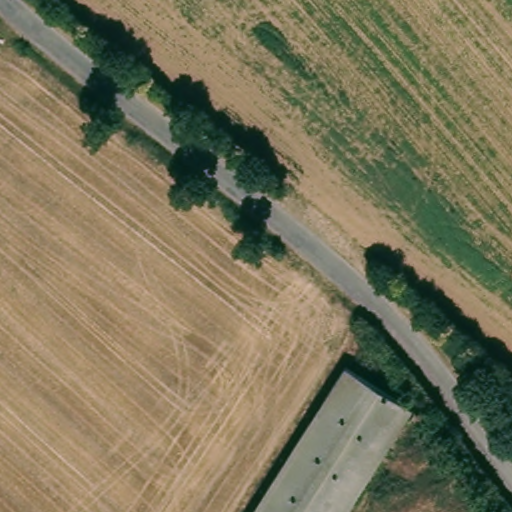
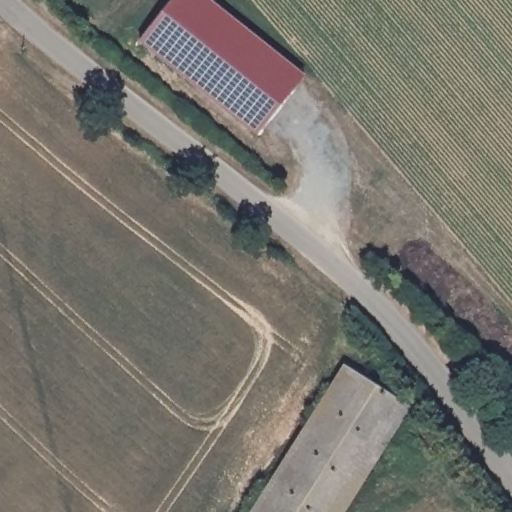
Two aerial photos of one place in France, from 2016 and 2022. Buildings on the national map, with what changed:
new [(142,42),(174,0),(210,0),(307,77),(260,136),(142,42)]
unchanged [(408,408),(344,512),(253,512),(342,368),(408,408)]

